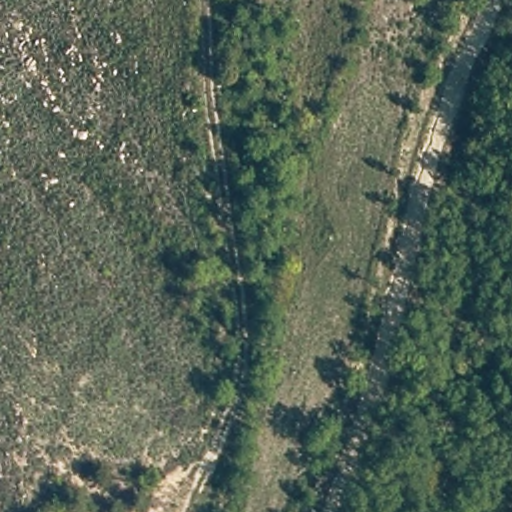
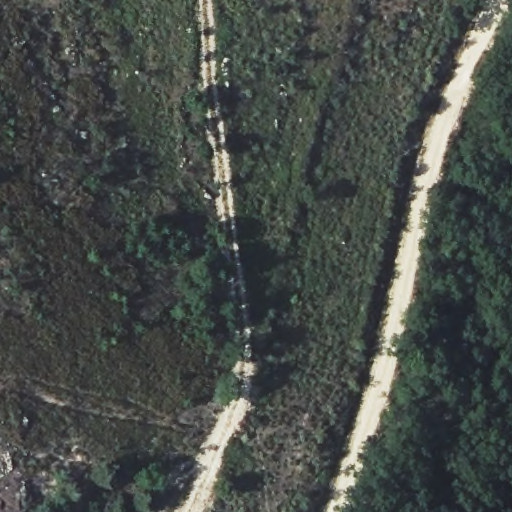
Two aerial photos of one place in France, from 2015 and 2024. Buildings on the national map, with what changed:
[]

